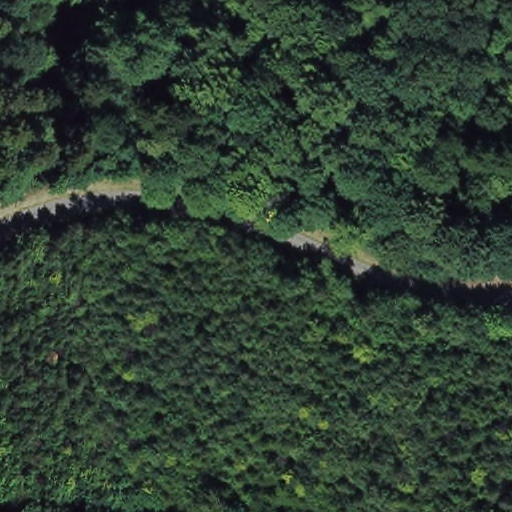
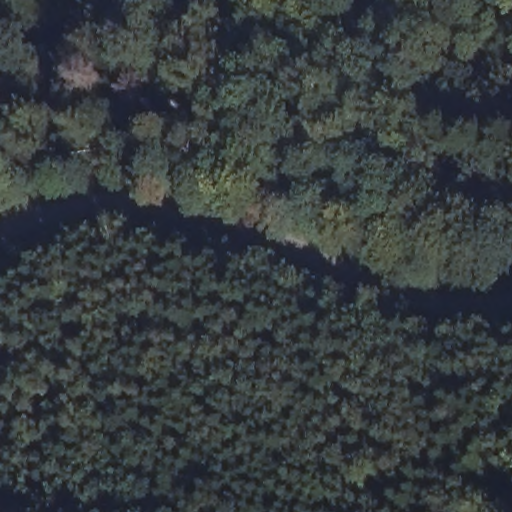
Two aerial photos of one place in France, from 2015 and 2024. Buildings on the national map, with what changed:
[]

